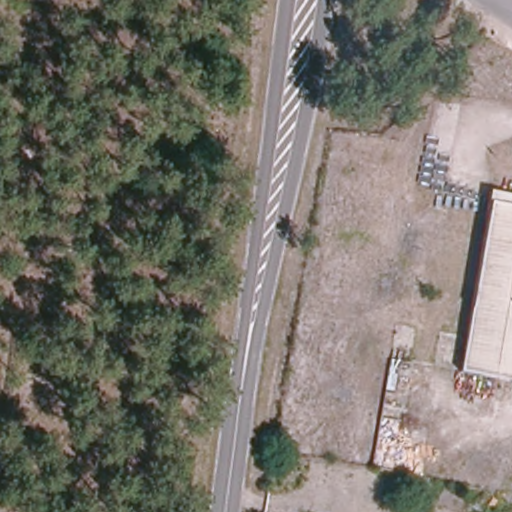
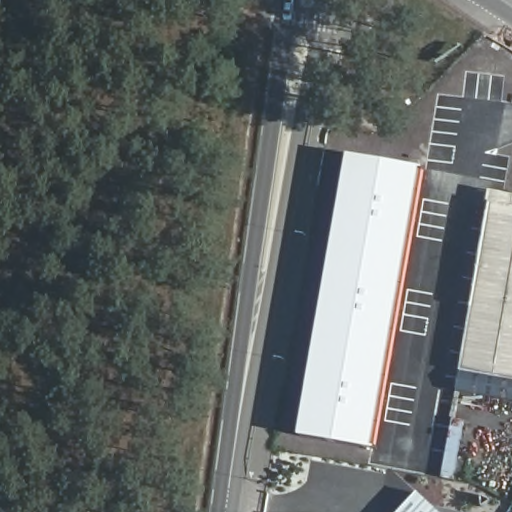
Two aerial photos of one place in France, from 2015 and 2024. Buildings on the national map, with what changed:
new [(301,437),(350,156),(426,169),(376,449),(301,437)]
unchanged [(462,372),(493,204),(489,204),(491,192),(512,196),(512,381),(462,372)]

